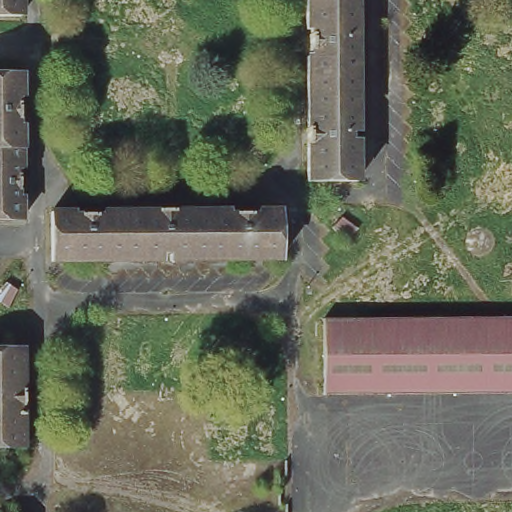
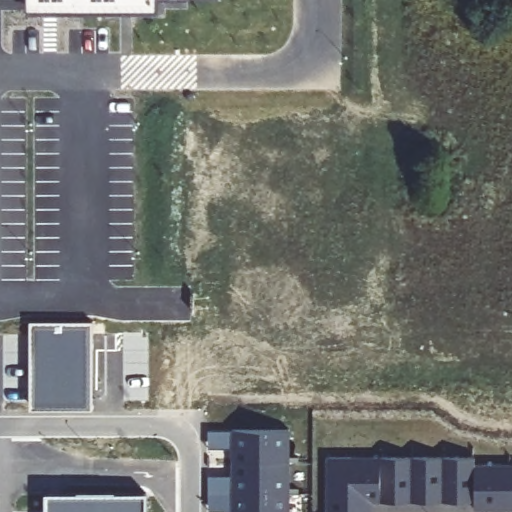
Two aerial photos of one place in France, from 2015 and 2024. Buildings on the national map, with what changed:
demolished [(23,10),(0,10),(0,0),(23,0),(23,10)]
new [(157,11),(27,9),(27,0),(157,0),(157,11)]
demolished [(365,123),(357,123),(357,134),(365,134),(365,174),(317,174),(315,49),(320,49),(320,21),(315,21),(314,0),(363,0),(365,123)]
demolished [(24,90),(23,120),(30,120),(30,161),(25,162),(25,191),(30,191),(30,214),(0,214),(0,71),(30,71),(30,90),(24,90)]
demolished [(291,253),(183,255),(183,246),(173,247),(173,254),(65,256),(64,205),(84,205),(84,210),(115,209),(115,205),(240,204),(240,209),(269,208),(268,204),(291,204),(291,253)]
demolished [(323,390),(323,318),(512,317),(512,388),(323,390)]
new [(91,408),(33,407),(33,323),(95,323),(91,384),(91,408)]
demolished [(0,442),(0,344),(32,344),(32,442),(0,442)]
new [(233,512),(233,430),(290,431),(290,512),(233,512)]
new [(474,509),(474,503),(372,501),(371,512),(326,512),(326,455),(475,456),(475,464),(512,465),(512,510),(474,509)]
new [(145,512),(45,512),(45,494),(145,494),(145,512)]

